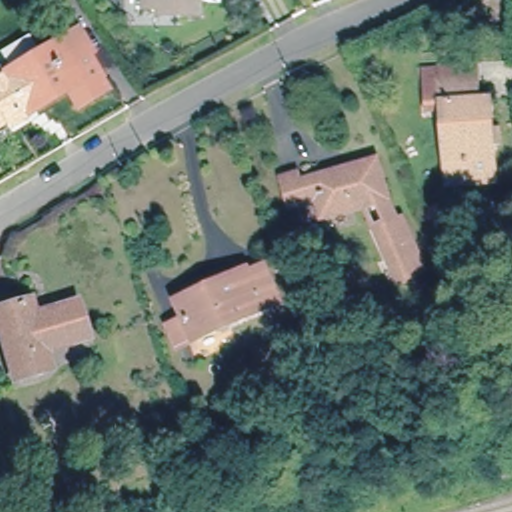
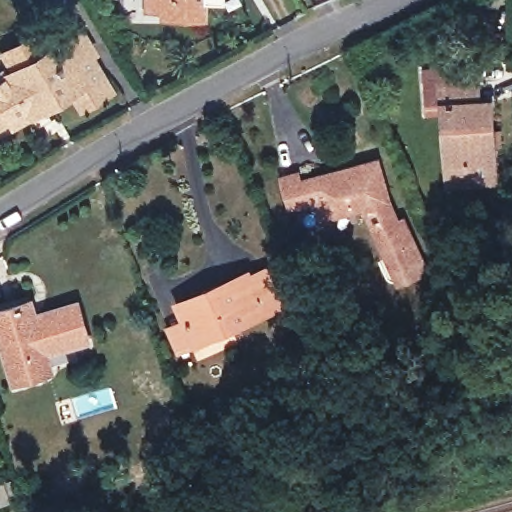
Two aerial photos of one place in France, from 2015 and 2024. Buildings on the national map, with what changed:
unchanged [(194,19),(153,19),(152,11),(137,10),(139,1),(140,0),(196,0),(194,19)]
unchanged [(77,33),(94,60),(91,63),(105,88),(76,105),(64,88),(9,118),(0,103),(0,69),(14,63),(4,46),(32,35),(40,51),(60,41),(77,33)]
unchanged [(445,153),(442,116),(437,76),(470,72),(471,72),(479,71),(482,91),(487,90),(490,115),(498,115),(500,136),(491,137),(495,170),(476,172),(446,173),(445,153)]
unchanged [(326,167),(332,178),(372,159),(398,204),(367,221),(348,187),(319,202),(306,178),(326,167)]
unchanged [(398,204),(426,269),(393,285),(367,221),(398,204)]
unchanged [(166,327),(180,319),(174,307),(254,264),(273,303),(195,346),(193,342),(178,351),(166,327)]
unchanged [(24,294),(28,309),(82,298),(90,327),(39,339),(46,369),(8,379),(0,339),(0,301),(24,294)]

